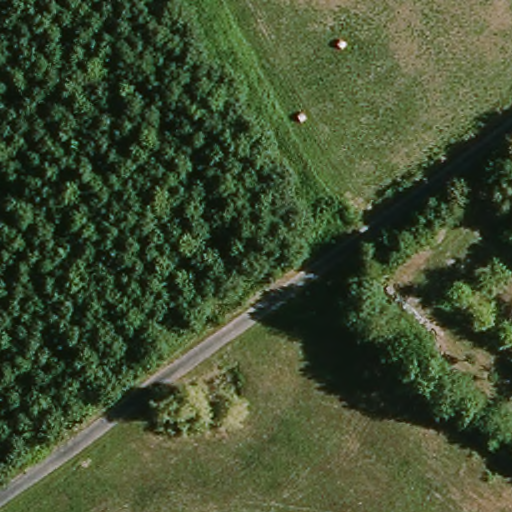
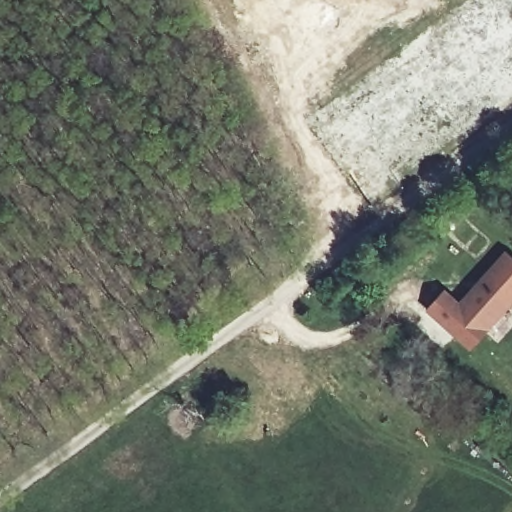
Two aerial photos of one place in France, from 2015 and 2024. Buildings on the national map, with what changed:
new [(425,311),(444,290),(458,302),(504,251),(512,258),(512,303),(488,330),(469,351),(425,311)]

